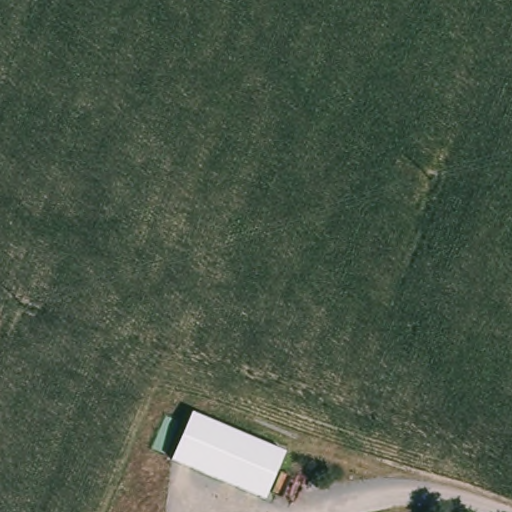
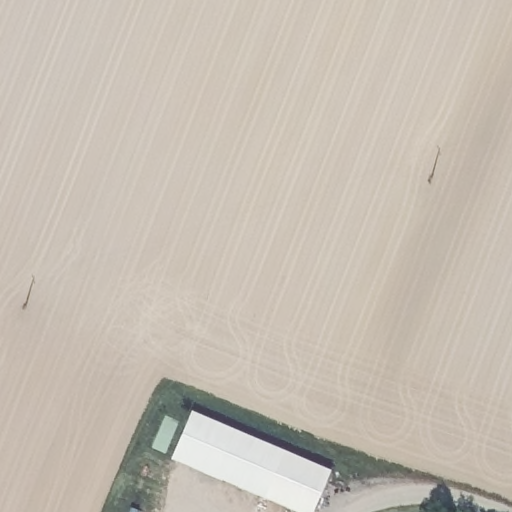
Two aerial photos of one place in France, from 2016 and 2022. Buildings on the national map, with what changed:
unchanged [(174,458),(193,412),(285,451),(265,498),(174,458)]
new [(329,470),(312,512),(298,512),(265,498),(285,451),(329,470)]

